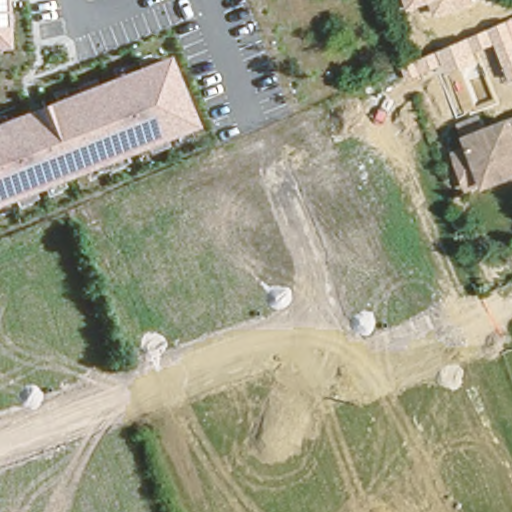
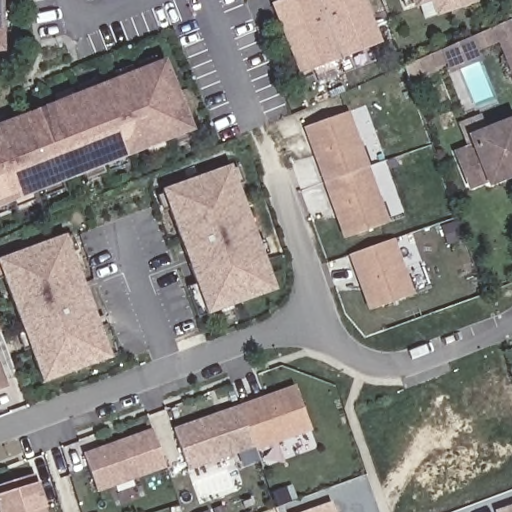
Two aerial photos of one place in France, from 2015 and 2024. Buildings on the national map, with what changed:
unchanged [(3,0),(5,55),(0,55),(0,0),(3,0)]
new [(366,0),(383,44),(304,74),(277,3),(284,0),(366,0)]
unchanged [(441,15),(437,3),(413,11),(409,0),(481,0),(481,1),(441,15)]
unchanged [(512,80),(498,46),(480,54),(482,61),(447,74),(443,66),(411,79),(405,65),(510,20),(512,23),(512,80)]
unchanged [(0,209),(0,125),(165,60),(194,132),(0,209)]
new [(303,128),(348,111),(389,224),(343,240),(303,128)]
unchanged [(488,180),(470,187),(457,153),(474,146),(470,136),(485,131),(512,120),(512,175),(489,184),(488,180)]
new [(207,316),(162,189),(231,164),(277,291),(207,316)]
new [(43,384),(0,267),(0,258),(65,234),(112,359),(43,384)]
new [(348,255),(394,239),(414,294),(368,311),(348,255)]
new [(0,391),(0,368),(7,389),(0,391)]
new [(255,451),(254,449),(239,405),(294,385),(311,431),(255,451)]
new [(188,472),(173,429),(239,405),(254,449),(188,472)]
new [(97,494),(82,454),(152,429),(166,468),(97,494)]
new [(35,474),(47,512),(0,512),(0,484),(35,474)]
new [(332,503),(335,512),(304,512),(332,503)]
new [(512,512),(502,512),(512,509),(512,512)]

